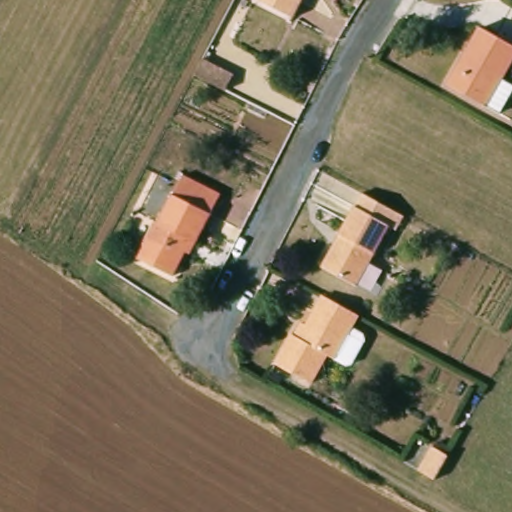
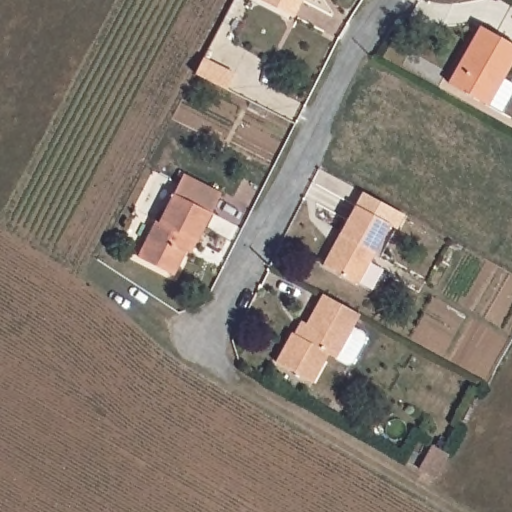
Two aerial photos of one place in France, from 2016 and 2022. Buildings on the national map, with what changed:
unchanged [(293,17),(259,0),(302,0),(293,17)]
unchanged [(512,55),(512,71),(487,116),(448,94),(481,37),(512,55)]
unchanged [(172,194),(183,175),(221,193),(211,213),(196,242),(191,240),(173,275),(137,257),(172,194)]
unchanged [(355,200),(362,187),(404,210),(397,223),(390,219),(357,280),(322,261),(355,200)]
unchanged [(365,349),(352,373),(346,374),(335,368),(327,364),(311,393),(276,373),(292,344),(299,347),(323,305),(358,324),(351,337),(363,344),(365,349)]
unchanged [(425,464),(409,455),(422,430),(439,440),(425,464)]

